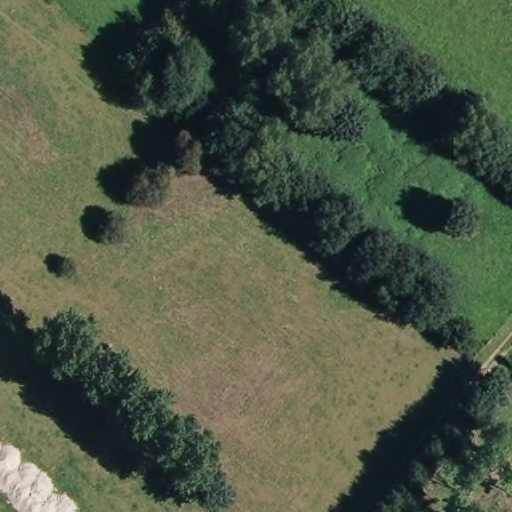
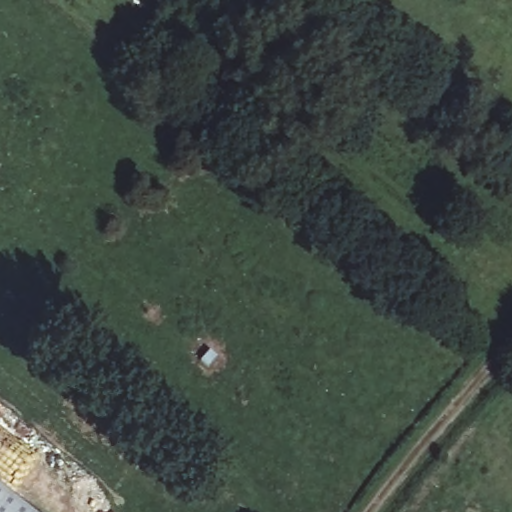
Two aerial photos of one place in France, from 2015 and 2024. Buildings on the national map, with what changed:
new [(0,512),(0,488),(31,512),(0,512)]

